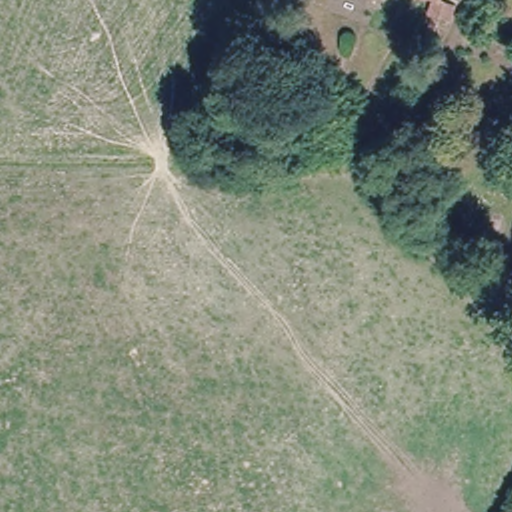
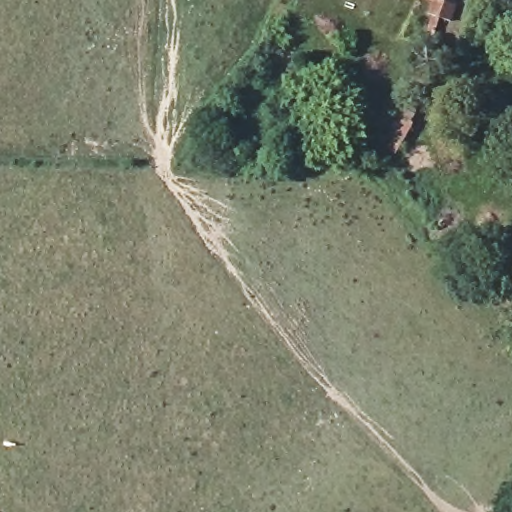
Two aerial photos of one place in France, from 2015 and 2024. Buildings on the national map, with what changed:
unchanged [(454,14),(436,9),(439,0),(456,0),(457,0),(454,14)]

